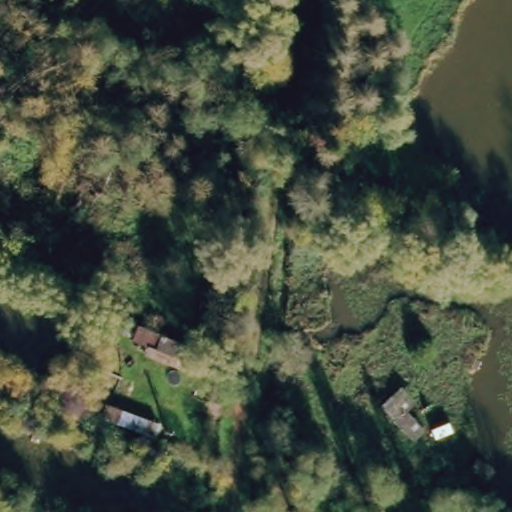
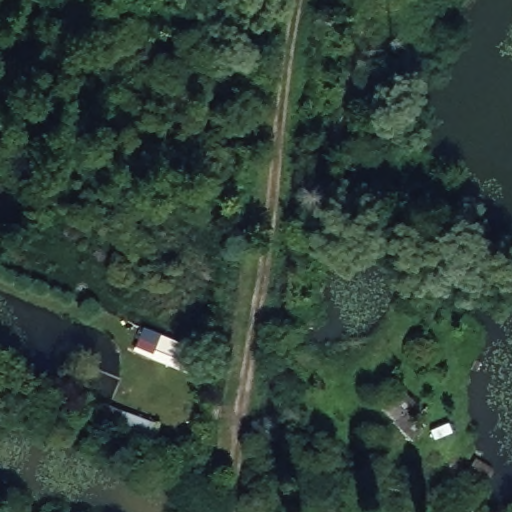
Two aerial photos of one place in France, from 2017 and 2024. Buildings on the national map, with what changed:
unchanged [(189,371),(127,350),(137,323),(197,346),(189,371)]
unchanged [(412,401),(404,410),(422,430),(410,440),(377,406),(401,385),(412,401)]
unchanged [(489,480),(467,471),(472,457),(494,466),(489,480)]

